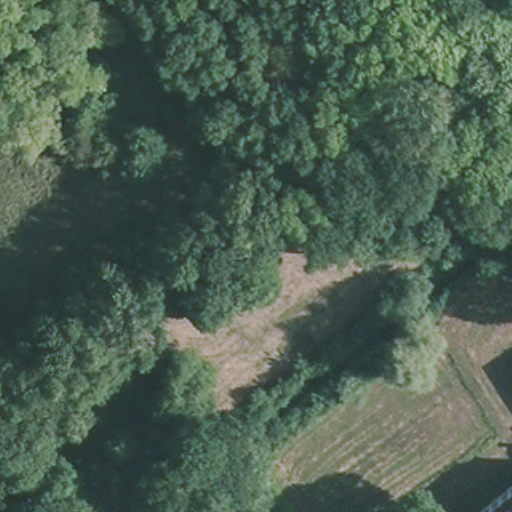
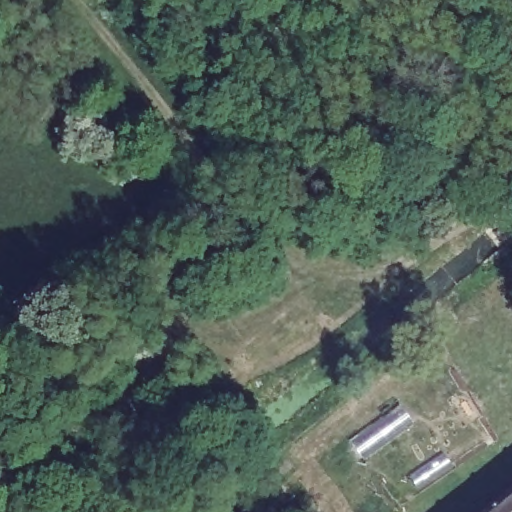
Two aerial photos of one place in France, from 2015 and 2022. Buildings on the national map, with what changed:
unchanged [(512,512),(482,512),(512,488),(512,512)]

